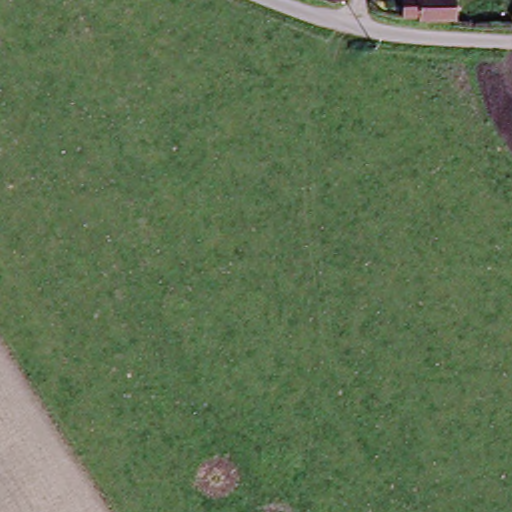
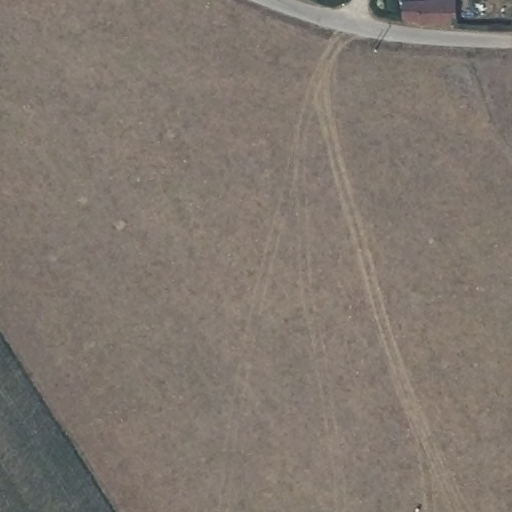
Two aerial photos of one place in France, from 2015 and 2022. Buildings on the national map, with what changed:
unchanged [(401,20),(400,0),(435,0),(453,0),(454,22),(401,20)]

